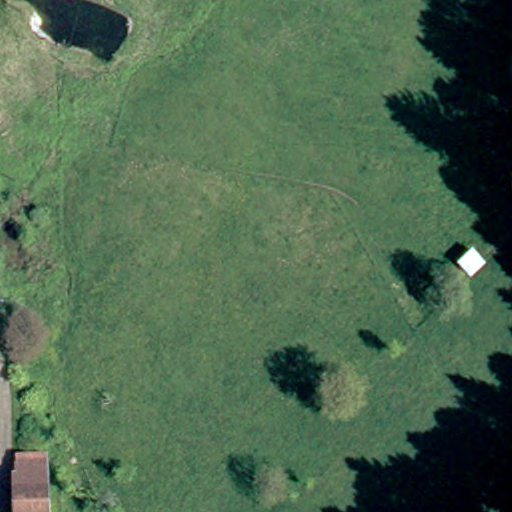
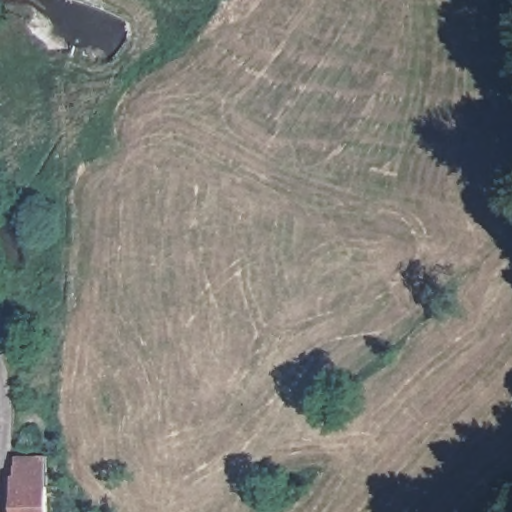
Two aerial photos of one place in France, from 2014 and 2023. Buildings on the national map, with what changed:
unchanged [(58,512),(23,512),(20,463),(55,461),(58,512)]

